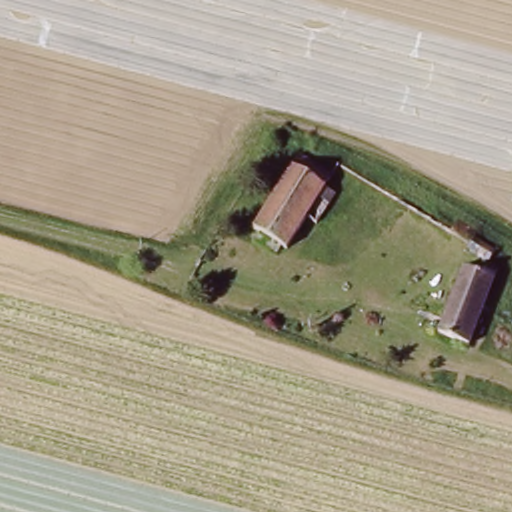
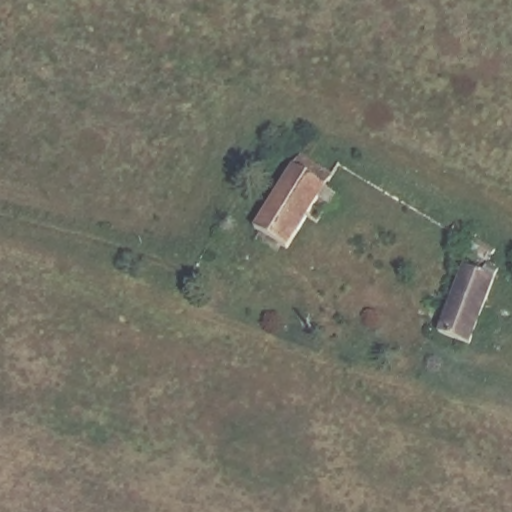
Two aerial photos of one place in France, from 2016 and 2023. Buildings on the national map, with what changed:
unchanged [(335,181),(327,195),(337,201),(321,227),(311,221),(282,266),(266,256),(258,270),(242,260),(306,162),(335,181)]
unchanged [(499,266),(486,297),(465,350),(434,337),(470,254),(499,266)]

